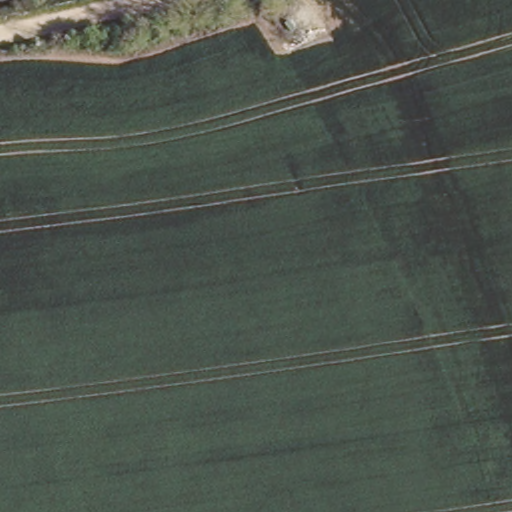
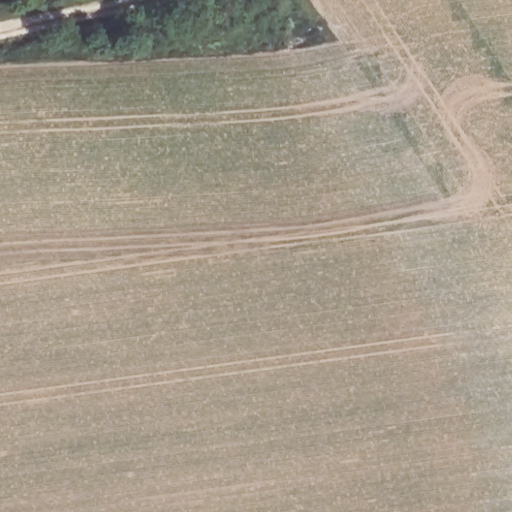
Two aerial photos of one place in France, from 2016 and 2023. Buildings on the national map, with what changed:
unchanged [(26,0),(28,6),(0,13),(0,0),(26,0)]

